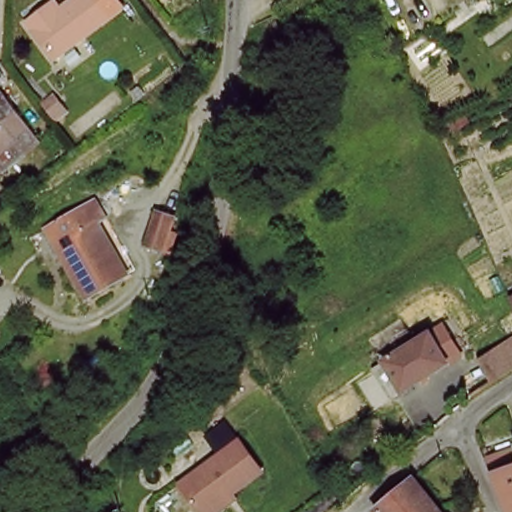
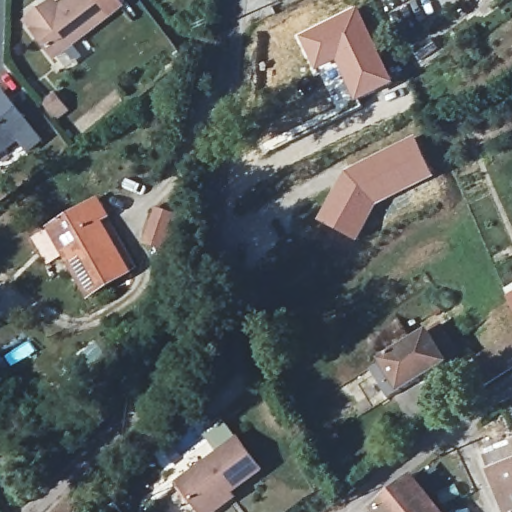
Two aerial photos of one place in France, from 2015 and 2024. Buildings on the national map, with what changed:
unchanged [(72,0),(113,0),(120,11),(67,48),(40,8),(53,0),(60,0),(63,5),(72,0)]
new [(357,6),(396,84),(356,102),(334,61),(316,70),(299,36),(357,6)]
unchanged [(0,161),(0,121),(18,148),(0,161)]
new [(345,170),(414,133),(436,175),(379,206),(358,241),(316,219),(345,170)]
unchanged [(106,216),(98,222),(124,262),(108,275),(113,282),(92,297),(46,231),(94,197),(106,216)]
unchanged [(161,265),(179,230),(193,237),(176,272),(161,265)]
unchanged [(508,301),(512,298),(512,308),(508,301)]
unchanged [(501,322),(512,316),(512,339),(501,322)]
unchanged [(426,337),(427,336),(450,364),(413,393),(392,365),(426,337)]
unchanged [(512,343),(512,372),(490,386),(477,364),(478,364),(512,343)]
unchanged [(387,369),(404,394),(391,405),(372,381),(387,369)]
unchanged [(224,512),(199,512),(181,486),(241,443),(263,476),(233,498),(236,503),(224,512)]
unchanged [(501,462),(512,459),(512,499),(501,462)]
unchanged [(379,510),(393,498),(415,478),(439,512),(381,512),(379,510)]

